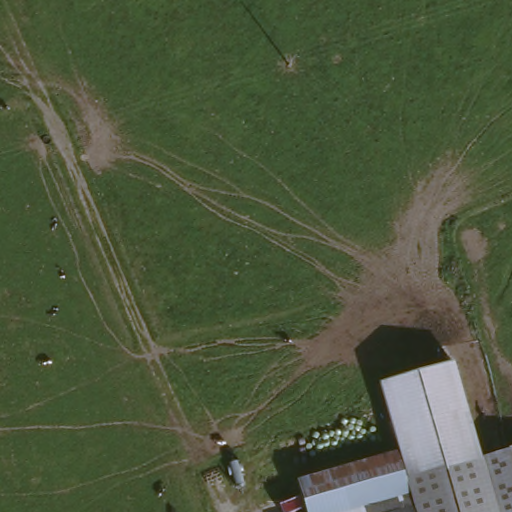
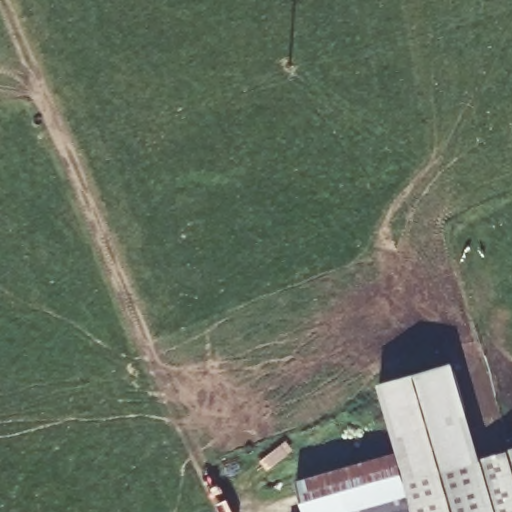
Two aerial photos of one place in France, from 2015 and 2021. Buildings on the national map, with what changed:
unchanged [(379,384),(452,363),(480,455),(404,477),(398,456),(379,384)]
unchanged [(512,446),(512,452),(509,447),(512,446)]
unchanged [(398,456),(404,477),(509,447),(512,452),(512,512),(303,512),(295,485),(398,456)]

